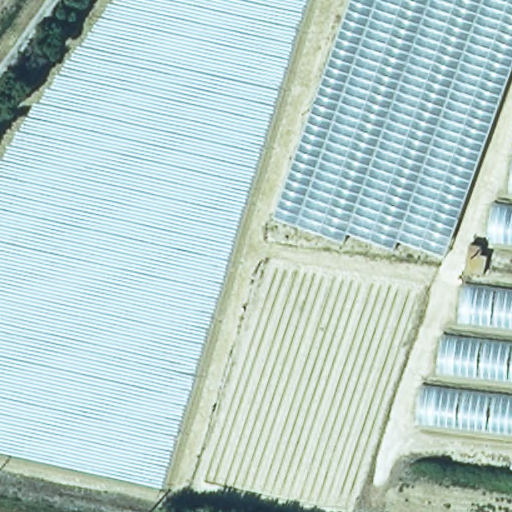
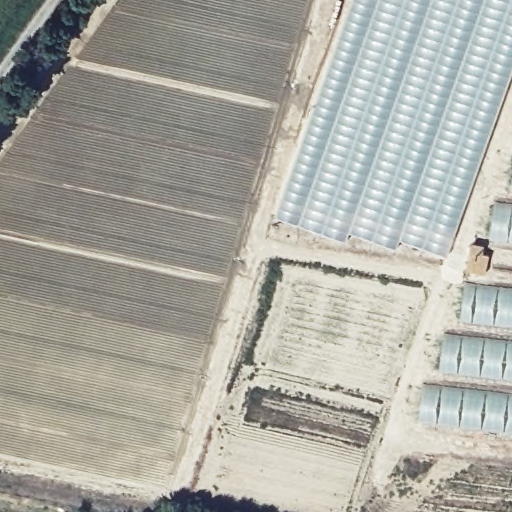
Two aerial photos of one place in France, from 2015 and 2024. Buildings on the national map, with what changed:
unchanged [(347,0),(512,0),(512,55),(438,253),(271,215),(347,0)]
unchanged [(512,152),(512,433),(415,423),(512,152)]

